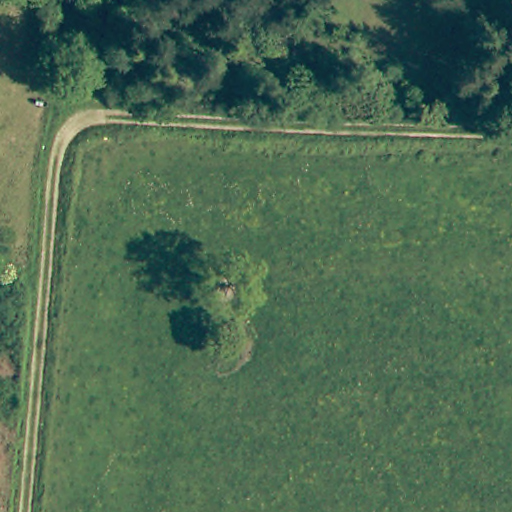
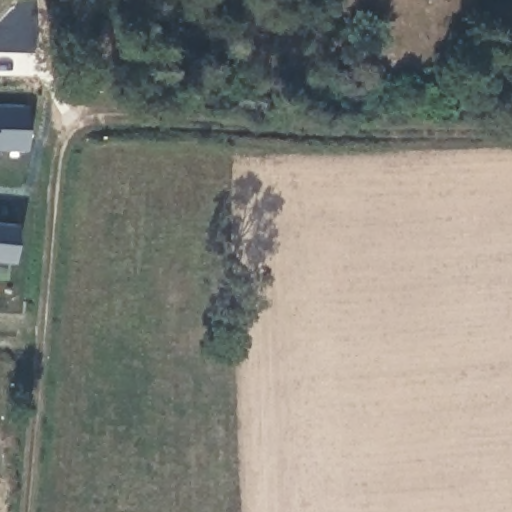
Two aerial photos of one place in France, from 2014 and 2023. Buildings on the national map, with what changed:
new [(30,102),(29,146),(0,146),(0,102),(30,102)]
new [(10,262),(0,260),(0,224),(15,226),(10,262)]

